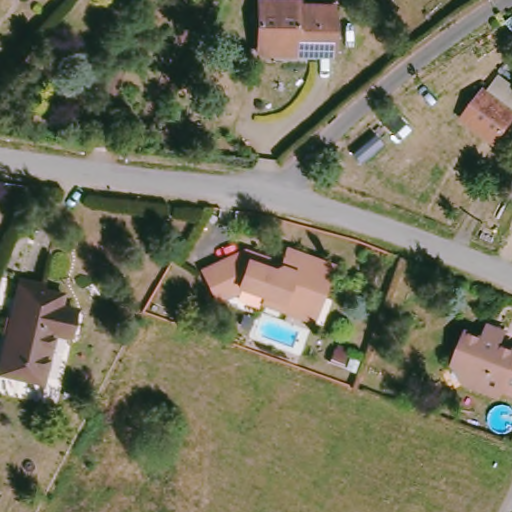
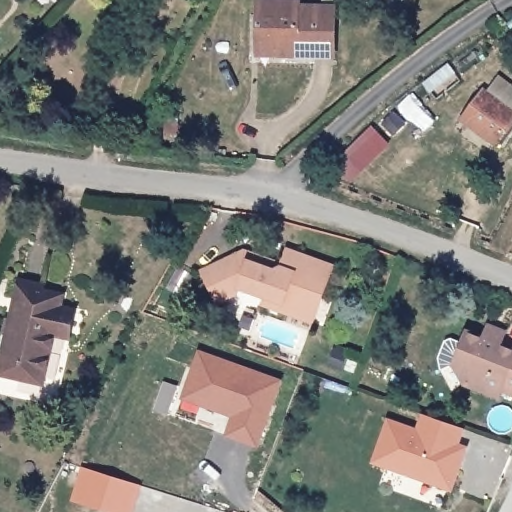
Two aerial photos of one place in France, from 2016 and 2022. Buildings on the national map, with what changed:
unchanged [(258,50),(259,1),(299,2),(299,7),(335,7),(334,56),(296,56),(258,55),(258,50)]
unchanged [(483,91),(496,74),(512,85),(512,121),(495,144),(462,120),(483,91)]
unchanged [(338,266),(318,322),(285,311),(288,303),(245,288),(243,293),(222,303),(207,271),(250,251),(257,254),(287,264),(292,250),(338,266)]
unchanged [(0,375),(0,369),(20,281),(43,286),(42,290),(63,296),(60,308),(70,312),(76,312),(71,336),(65,335),(55,332),(45,379),(43,385),(0,375)]
unchanged [(499,392),(465,379),(470,366),(454,360),(467,327),(483,332),(487,320),(506,327),(502,340),(512,344),(512,389),(502,386),(499,392)]
new [(225,436),(231,416),(181,398),(200,351),(282,381),(260,447),(225,436)]
new [(458,445),(418,431),(424,414),(464,428),(458,445)]
new [(461,446),(455,463),(460,467),(452,488),(375,460),(389,420),(458,445),(461,446)]
new [(85,468),(141,486),(133,512),(112,512),(75,501),(85,468)]

